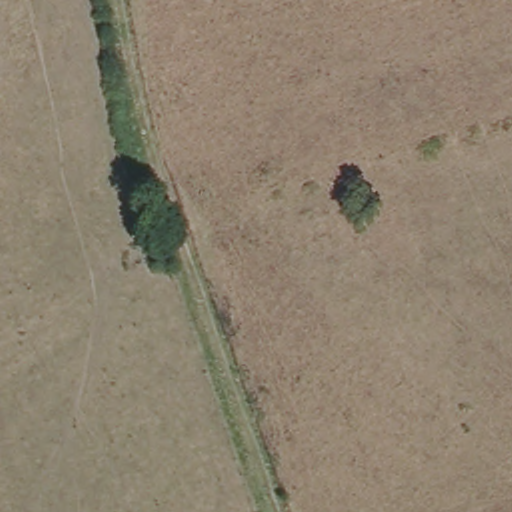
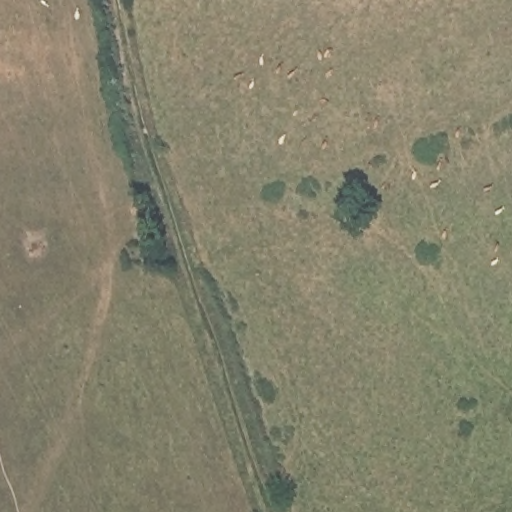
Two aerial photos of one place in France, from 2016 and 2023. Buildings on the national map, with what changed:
[]

